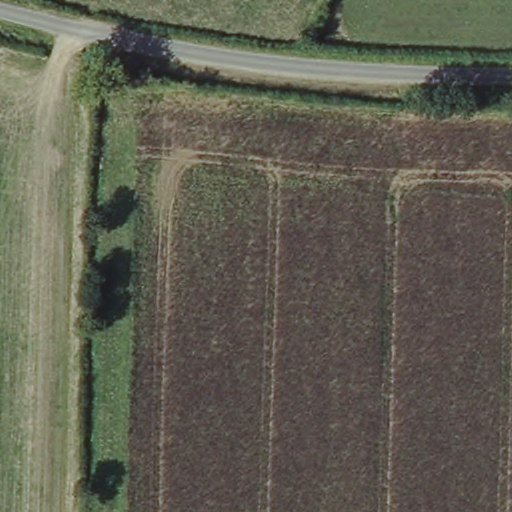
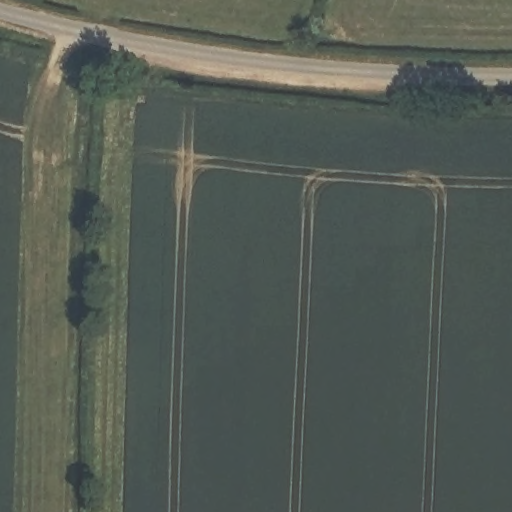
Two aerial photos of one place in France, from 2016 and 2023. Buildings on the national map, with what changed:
[]

